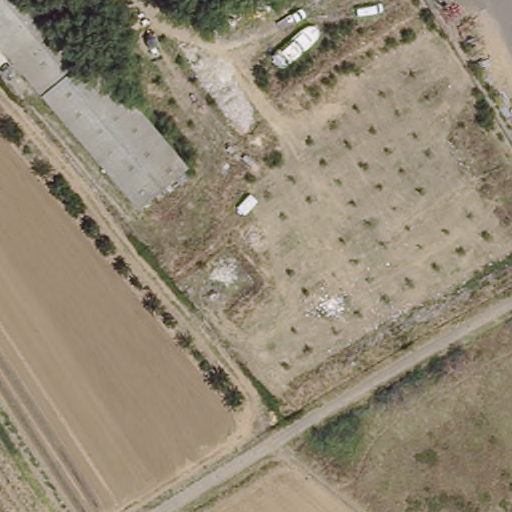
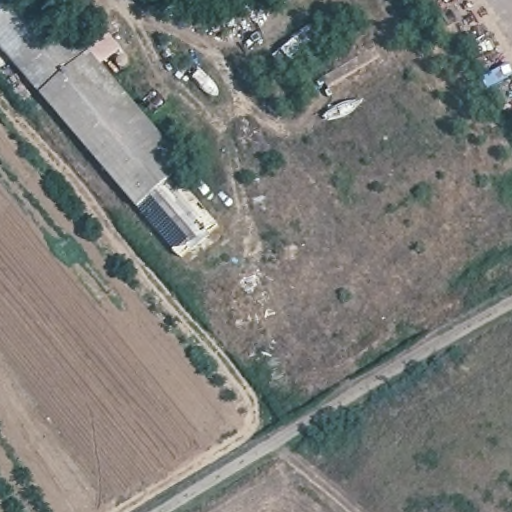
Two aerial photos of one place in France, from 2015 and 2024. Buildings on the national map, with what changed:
unchanged [(92,52),(190,168),(139,206),(0,44),(0,0),(41,0),(87,57),(92,52)]
new [(139,206),(178,177),(221,227),(182,260),(139,206)]

